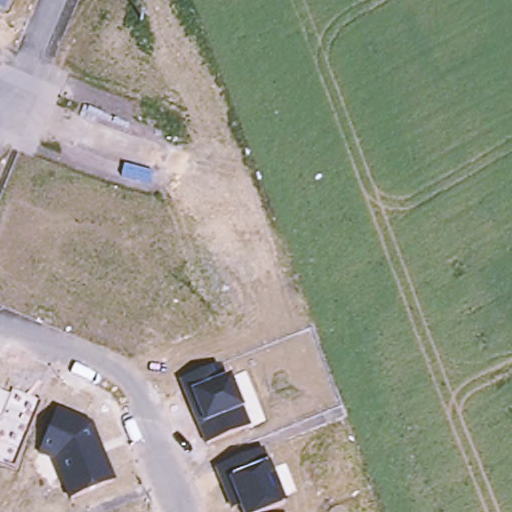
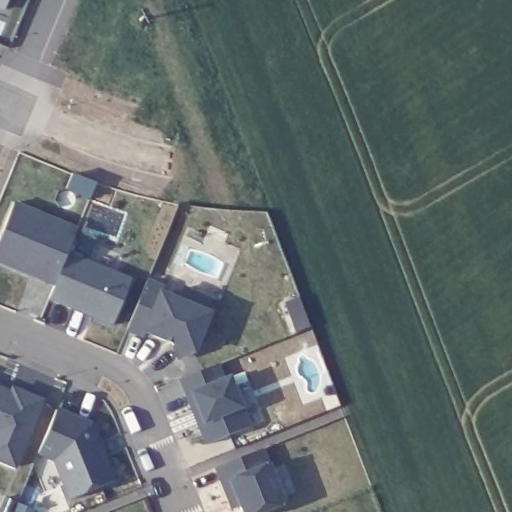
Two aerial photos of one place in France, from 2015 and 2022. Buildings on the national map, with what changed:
unchanged [(5,10),(0,8),(0,0),(8,0),(5,10)]
new [(70,251),(133,281),(113,327),(49,300),(55,286),(0,265),(0,237),(13,203),(78,229),(70,251)]
new [(165,292),(163,298),(180,305),(185,292),(213,304),(207,317),(211,318),(195,357),(181,363),(175,348),(176,345),(169,342),(167,345),(147,336),(145,341),(129,334),(149,285),(165,292)]
unchanged [(182,379),(220,364),(225,380),(231,377),(251,426),(208,444),(203,430),(192,405),(182,379)]
new [(10,389),(39,401),(11,467),(0,462),(0,390),(7,393),(10,389)]
unchanged [(58,410),(92,424),(101,444),(98,445),(103,457),(105,456),(116,481),(73,499),(57,460),(41,453),(47,438),(58,410)]
unchanged [(286,504),(265,512),(245,512),(242,505),(235,509),(218,467),(264,449),(286,504)]

